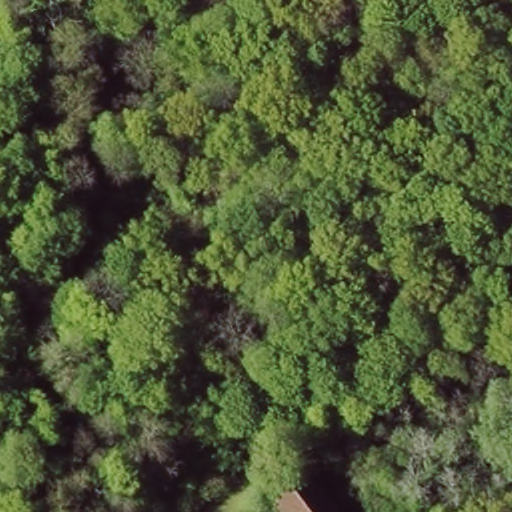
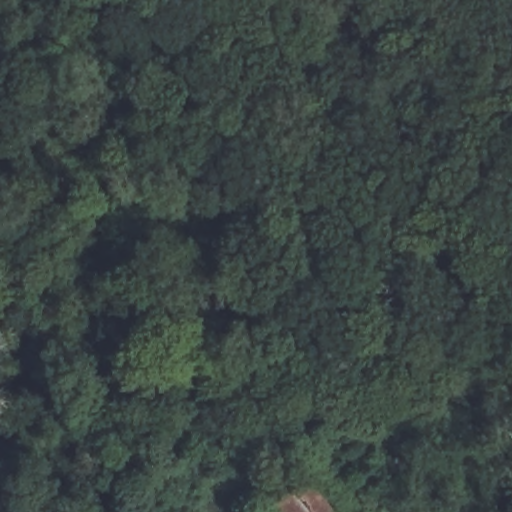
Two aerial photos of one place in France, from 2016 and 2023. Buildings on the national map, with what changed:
unchanged [(310,473),(340,512),(275,512),(270,504),(310,473)]

